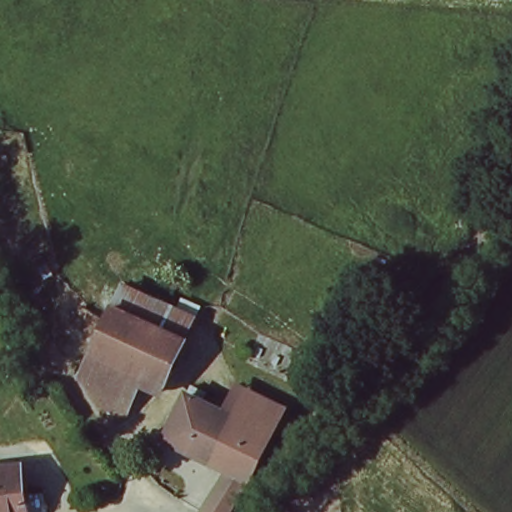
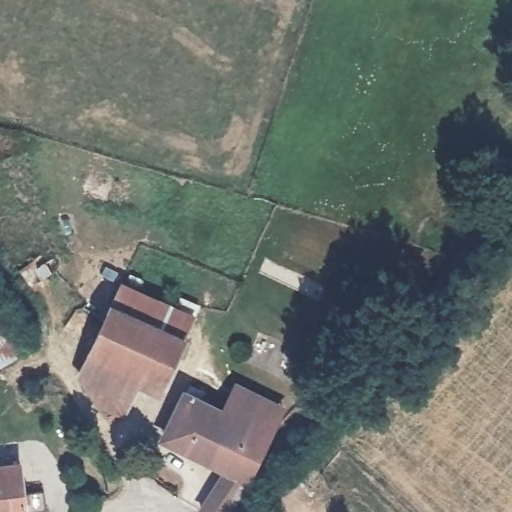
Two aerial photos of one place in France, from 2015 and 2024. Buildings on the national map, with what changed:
unchanged [(113,300),(125,278),(198,314),(188,337),(113,300)]
unchanged [(164,383),(140,373),(119,418),(100,409),(75,370),(113,300),(188,337),(164,383)]
unchanged [(225,410),(240,383),(253,389),(267,367),(300,384),(275,433),(225,410)]
unchanged [(233,512),(208,512),(229,470),(162,435),(184,391),(192,377),(218,391),(212,404),(225,410),(275,433),(265,450),(233,512)]
unchanged [(22,512),(0,512),(0,464),(22,464),(22,512)]

